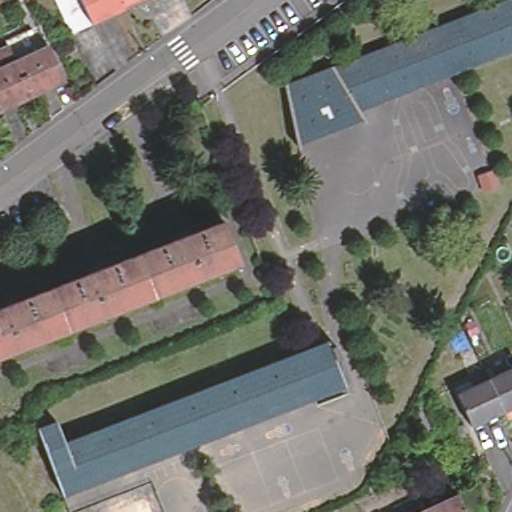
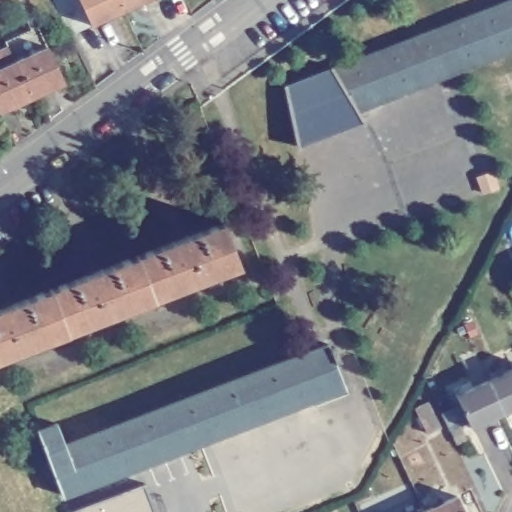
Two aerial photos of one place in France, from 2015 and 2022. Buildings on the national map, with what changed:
unchanged [(90,0),(98,16),(75,26),(62,0),(90,0)]
unchanged [(129,0),(129,1),(98,16),(90,0),(129,0)]
unchanged [(131,0),(129,1),(129,0),(131,0)]
unchanged [(279,81),(279,85),(323,67),(322,64),(324,63),(325,66),(494,0),(512,0),(512,42),(350,105),(355,116),(354,116),(347,106),(332,119),(315,127),(305,129),(289,130),(291,141),(289,141),(276,82),(279,81)]
unchanged [(0,38),(33,23),(42,43),(60,78),(27,94),(0,107),(0,46),(4,44),(0,38)]
unchanged [(235,262),(0,354),(0,304),(217,218),(235,262)]
unchanged [(52,422),(61,443),(322,342),(325,347),(330,346),(335,358),(330,360),(340,384),(57,494),(32,429),(52,422)]
unchanged [(484,372),(512,359),(512,398),(500,405),(484,372)]
unchanged [(484,372),(500,405),(467,419),(453,387),(484,372)]
unchanged [(429,504),(427,499),(435,495),(437,500),(452,493),(461,512),(423,512),(420,507),(429,504)]
unchanged [(420,507),(423,512),(410,512),(420,507)]

